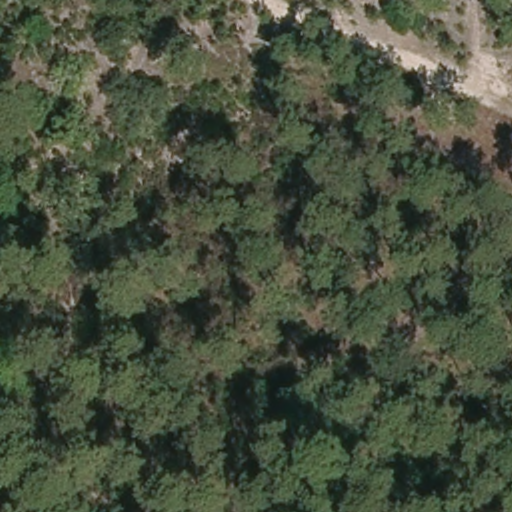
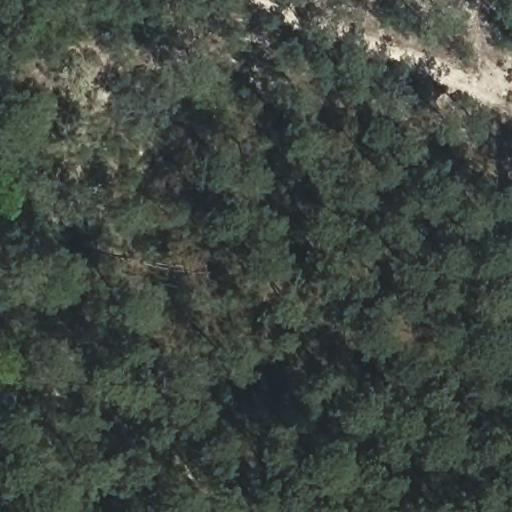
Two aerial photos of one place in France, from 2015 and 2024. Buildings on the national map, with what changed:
[]

